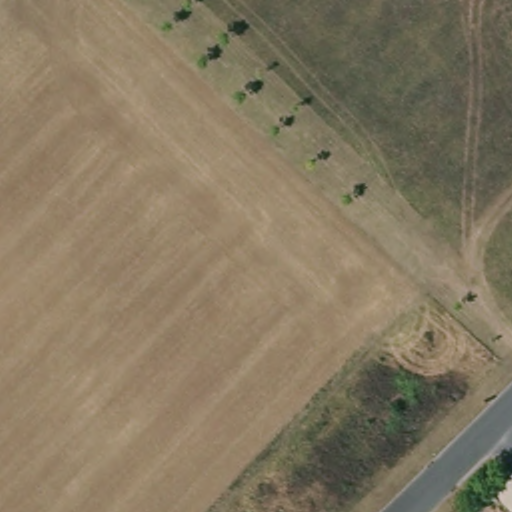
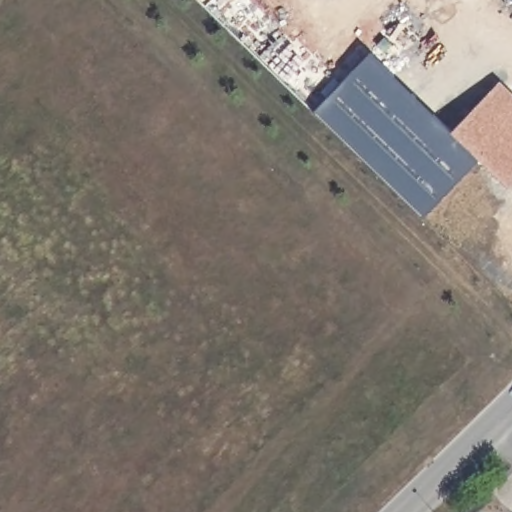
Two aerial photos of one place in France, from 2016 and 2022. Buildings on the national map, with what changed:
new [(459,138),(500,97),(512,109),(512,169),(502,179),(481,159),(423,218),(313,112),(372,53),(459,138)]

